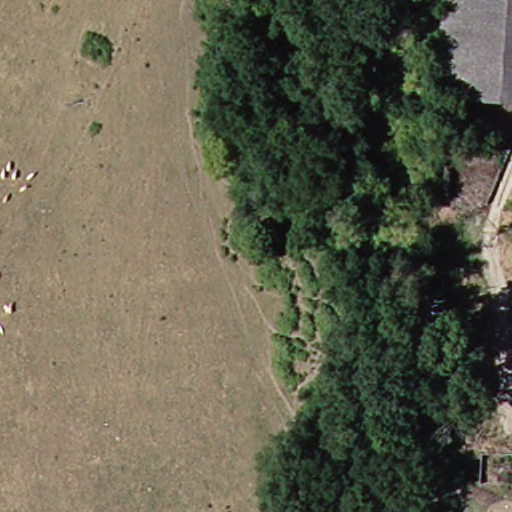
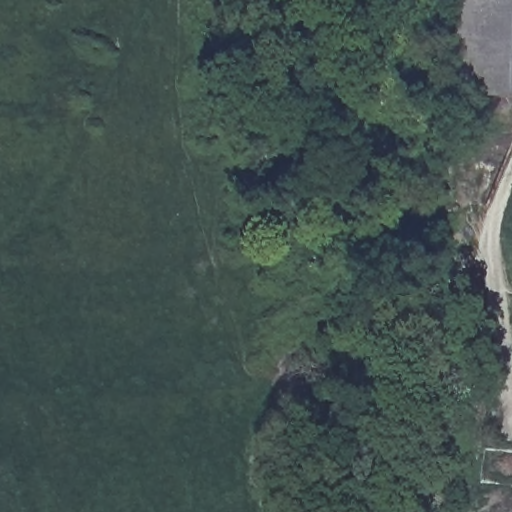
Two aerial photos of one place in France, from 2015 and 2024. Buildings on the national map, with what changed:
unchanged [(512,99),(432,93),(437,0),(512,0),(512,99)]
unchanged [(512,496),(491,496),(494,467),(512,467),(512,496)]

